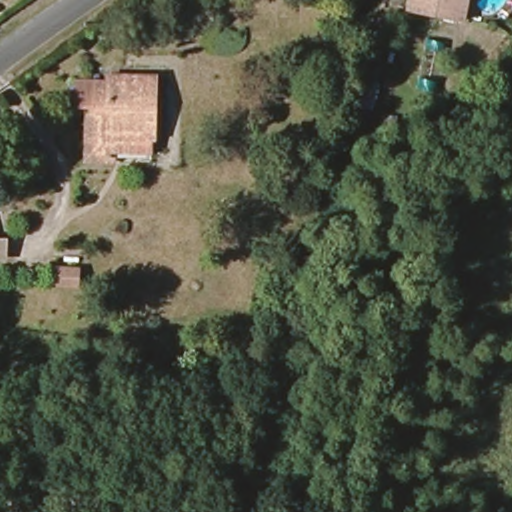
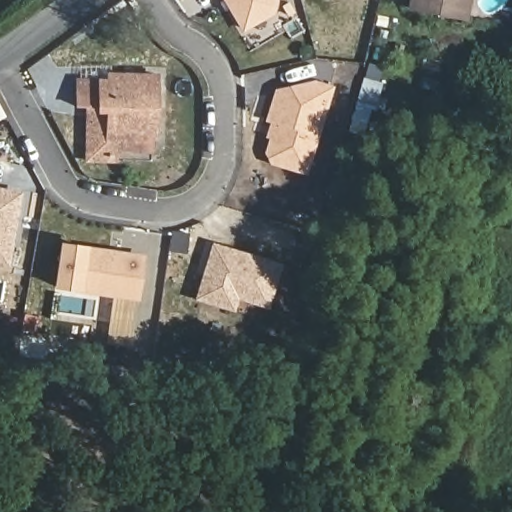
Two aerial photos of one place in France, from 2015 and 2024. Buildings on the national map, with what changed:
new [(242,32),(222,0),(277,0),(275,12),(242,32)]
unchanged [(408,9),(409,0),(464,0),(461,19),(408,9)]
unchanged [(109,141),(108,160),(89,160),(91,105),(79,104),(81,82),(106,82),(106,77),(156,79),(156,142),(137,142),(109,141)]
new [(305,175),(268,164),(263,152),(266,139),(264,137),(268,122),(264,121),(274,89),(314,80),(333,86),(305,175)]
new [(9,267),(0,266),(0,188),(21,192),(9,267)]
demolished [(8,240),(7,258),(0,258),(0,238),(8,240)]
new [(58,242),(143,255),(140,301),(131,300),(132,335),(108,334),(111,298),(52,290),(58,242)]
new [(211,242),(282,263),(268,309),(238,300),(235,312),(194,300),(211,242)]
demolished [(53,288),(53,269),(79,268),(80,288),(53,288)]

